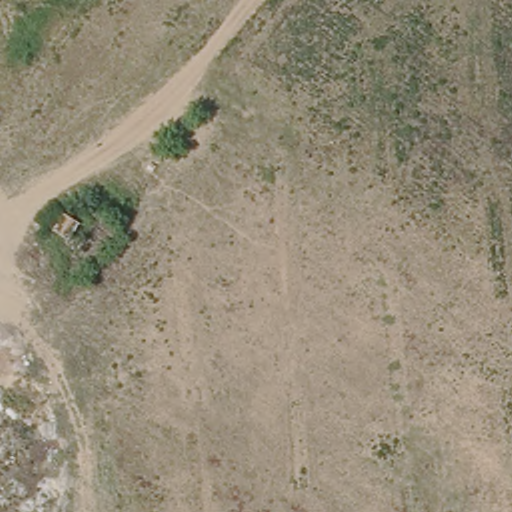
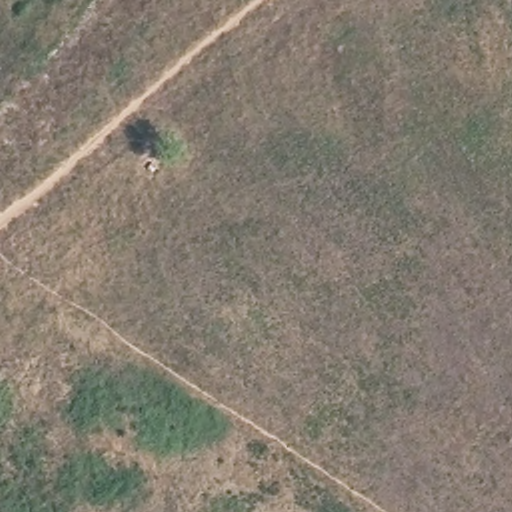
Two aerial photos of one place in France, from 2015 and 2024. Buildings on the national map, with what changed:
unchanged [(49,240),(60,224),(75,233),(64,250),(49,240)]

